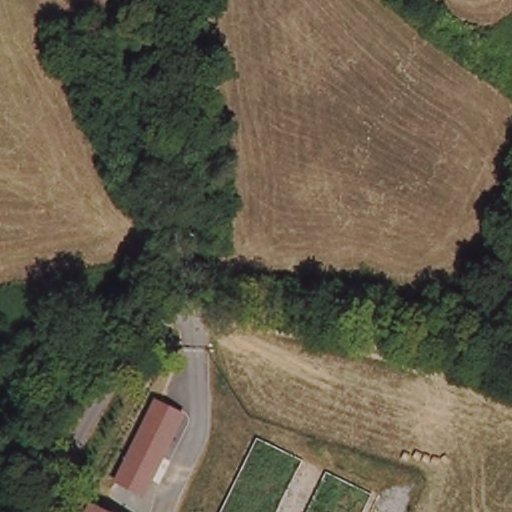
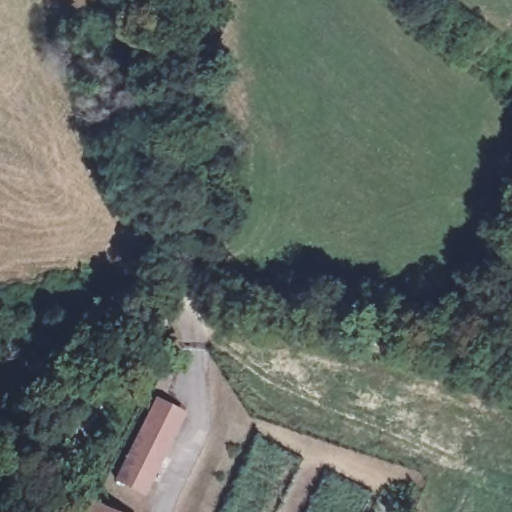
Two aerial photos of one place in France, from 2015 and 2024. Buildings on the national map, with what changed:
unchanged [(146,495),(113,480),(155,397),(186,413),(146,495)]
unchanged [(112,512),(75,512),(82,498),(112,512)]

